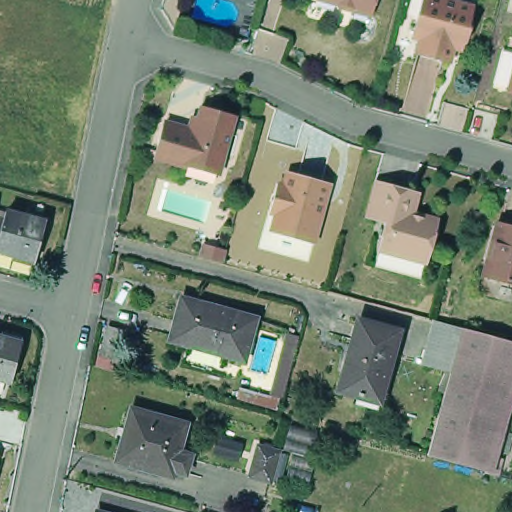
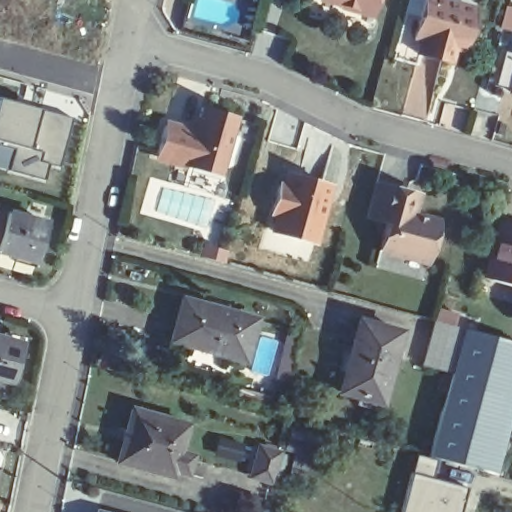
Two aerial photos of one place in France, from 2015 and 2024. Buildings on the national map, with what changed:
unchanged [(333,14),(326,12),(323,6),(304,1),(304,0),(362,0),(357,16),(356,20),(333,14)]
unchanged [(438,65),(414,58),(417,43),(408,41),(414,22),(417,21),(424,0),(468,12),(462,32),(465,35),(463,43),(459,44),(457,54),(449,51),(444,67),(438,65)]
unchanged [(499,101),(512,50),(512,105),(499,101)]
new [(59,169),(48,166),(45,182),(8,172),(14,150),(0,146),(0,100),(73,122),(59,169)]
unchanged [(219,166),(212,164),(206,185),(173,176),(173,171),(144,164),(151,135),(181,143),(188,117),(223,126),(218,144),(224,146),(219,166)]
unchanged [(253,246),(263,210),(270,186),(276,188),(281,174),(319,184),(304,240),(298,260),(253,246)]
unchanged [(364,266),(369,250),(376,222),(357,217),(368,182),(399,192),(398,199),(408,202),(404,214),(428,221),(417,263),(413,279),(364,266)]
unchanged [(0,244),(0,211),(5,212),(8,205),(48,216),(38,254),(0,244)]
unchanged [(470,289),(474,273),(489,220),(512,226),(512,298),(512,300),(470,289)]
unchanged [(201,246),(220,251),(217,264),(197,259),(201,246)]
unchanged [(164,337),(176,295),(207,304),(206,305),(246,317),(236,357),(164,337)]
unchanged [(330,388),(349,318),(390,329),(371,398),(330,388)]
unchanged [(457,353),(453,370),(424,362),(436,318),(464,326),(457,353)]
unchanged [(489,470),(434,455),(430,454),(453,370),(457,353),(464,326),(512,339),(512,383),(489,470)]
unchanged [(0,384),(0,342),(12,345),(1,384),(0,384)]
unchanged [(177,468),(175,473),(119,458),(134,405),(189,420),(181,449),(193,452),(188,471),(177,468)]
unchanged [(248,479),(256,449),(276,454),(268,483),(248,479)]
new [(434,479),(469,489),(463,512),(401,512),(416,455),(439,459),(434,479)]
unchanged [(98,512),(96,512),(96,511),(98,512)]

